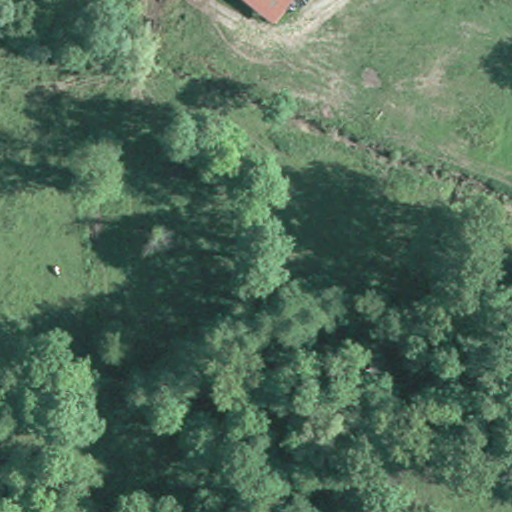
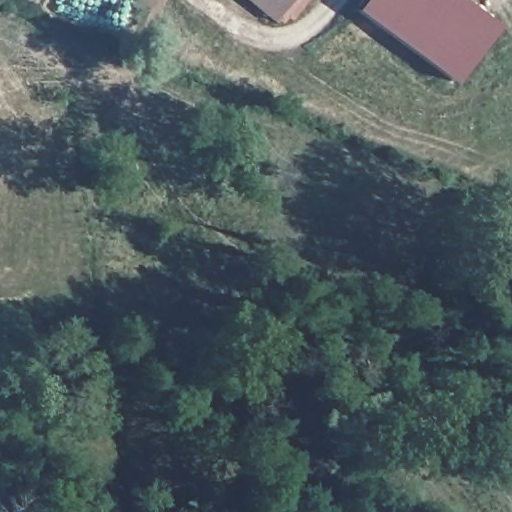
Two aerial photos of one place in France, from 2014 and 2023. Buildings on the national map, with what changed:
unchanged [(275,23),(248,0),(292,0),(275,23)]
new [(361,0),(461,0),(496,27),(454,83),(355,7),(361,0)]

